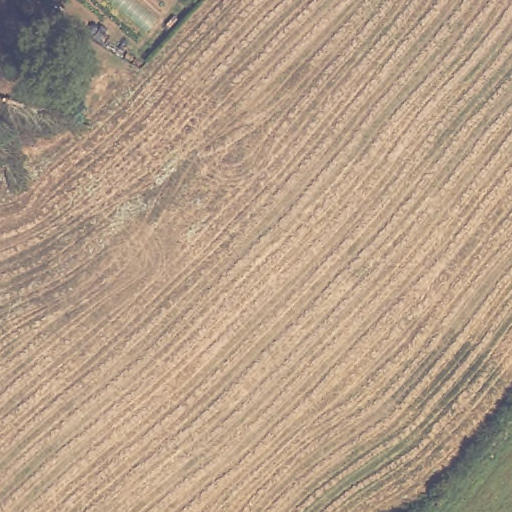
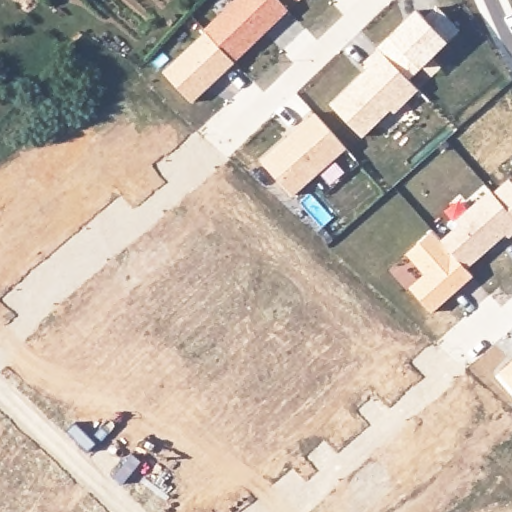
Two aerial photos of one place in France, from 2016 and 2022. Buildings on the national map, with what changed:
new [(205,32),(202,30),(234,0),(278,0),(288,10),(234,61),(236,62),(190,104),(162,71),(205,32)]
new [(299,1),(299,0),(301,0),(299,1)]
new [(389,34),(415,7),(424,16),(437,5),(461,31),(448,43),(423,67),(409,80),(377,47),(376,46),(389,34)]
new [(368,67),(363,62),(377,47),(409,80),(417,89),(394,111),(392,109),(363,137),(330,104),(368,67)]
new [(314,111),(347,149),(292,197),(259,161),(314,111)]
new [(423,274),(405,254),(432,230),(440,240),(456,225),(453,221),(490,189),(492,192),(508,179),(512,182),(512,236),(510,238),(506,235),(467,268),(474,276),(431,313),(408,288),(423,274)]
new [(512,360),(512,388),(498,373),(512,360)]

